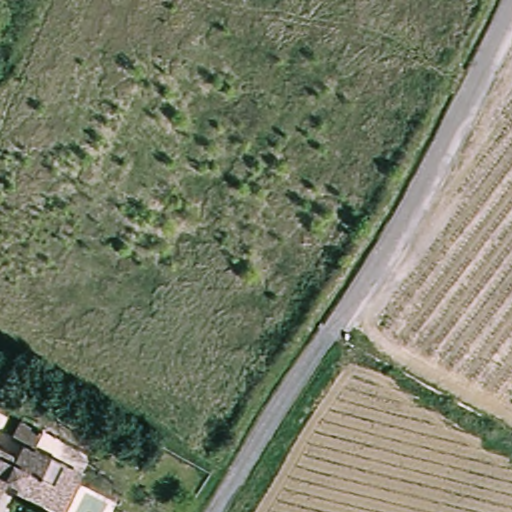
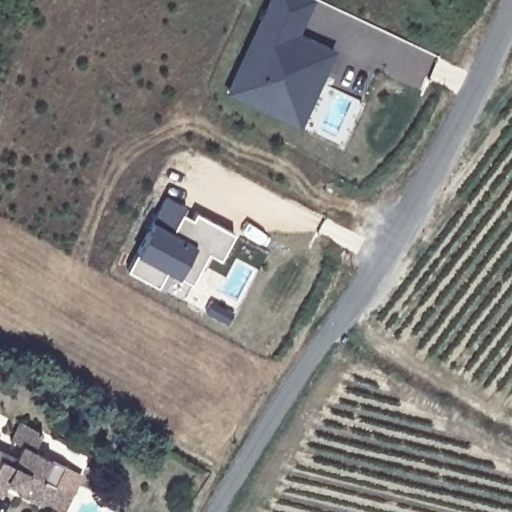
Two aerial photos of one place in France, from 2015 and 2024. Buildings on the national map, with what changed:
new [(234,96),(280,0),(314,0),(318,2),(301,39),(338,56),(323,89),(303,129),(285,121),(234,96)]
new [(178,277),(166,269),(156,287),(127,269),(135,253),(152,220),(165,195),(186,208),(182,214),(191,217),(195,212),(233,233),(220,257),(208,252),(190,284),(178,277)]
unchanged [(63,509),(52,504),(18,488),(5,482),(0,491),(0,443),(21,453),(26,441),(18,437),(25,420),(45,429),(37,446),(72,464),(82,469),(63,509)]
unchanged [(2,426),(0,429),(0,430),(0,425),(2,426)]
demolished [(164,451),(159,459),(150,454),(155,446),(164,451)]

